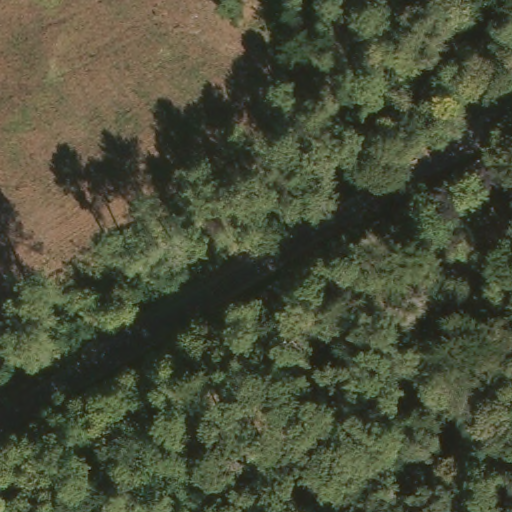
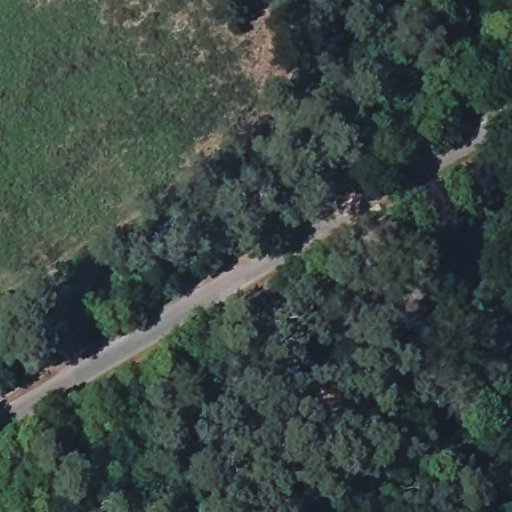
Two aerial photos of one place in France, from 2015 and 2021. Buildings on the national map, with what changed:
[]

